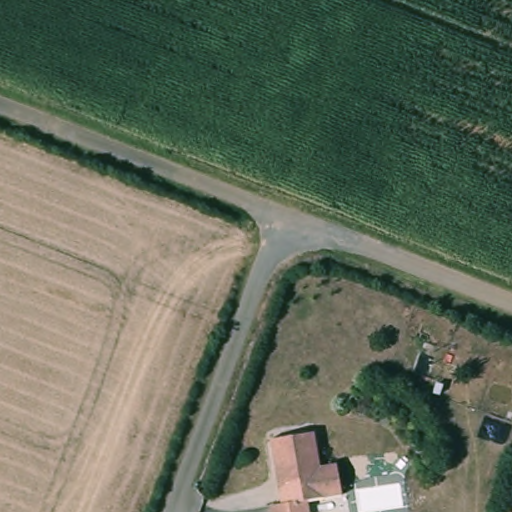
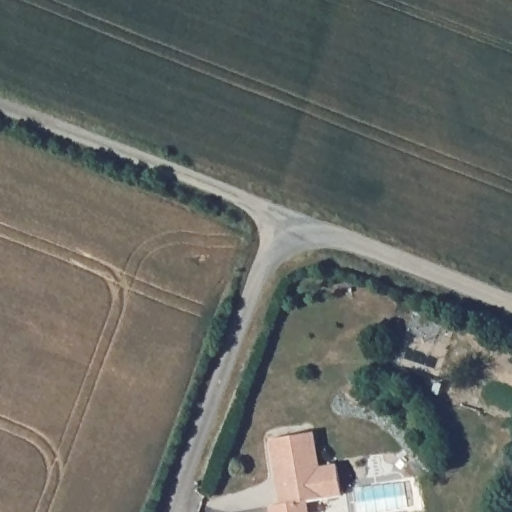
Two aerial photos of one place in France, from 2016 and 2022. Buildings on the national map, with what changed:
unchanged [(272,502),(283,498),(273,439),(319,431),(323,466),(338,463),(345,494),(307,499),(312,512),(274,512),(272,502)]

